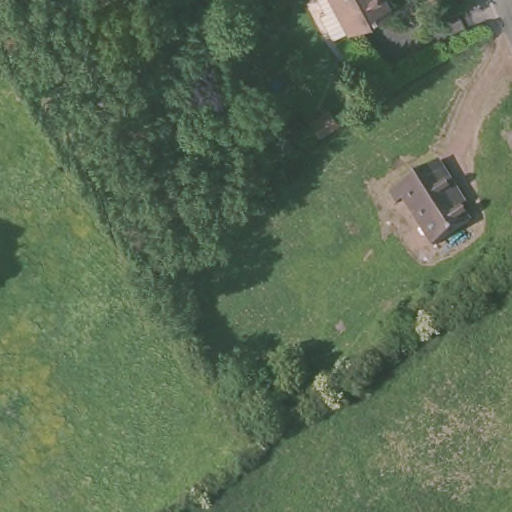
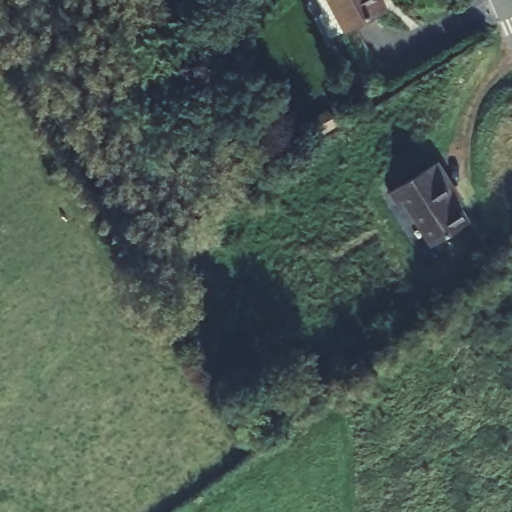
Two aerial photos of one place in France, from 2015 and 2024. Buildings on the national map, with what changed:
unchanged [(325,0),(380,0),(386,9),(347,36),(325,0)]
unchanged [(451,186),(446,189),(472,230),(435,255),(397,196),(440,169),(451,186)]

